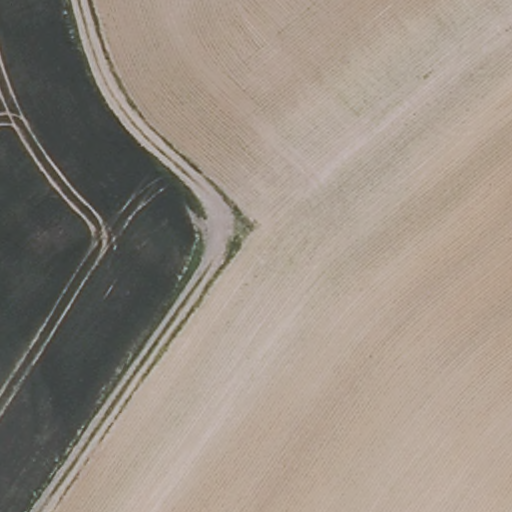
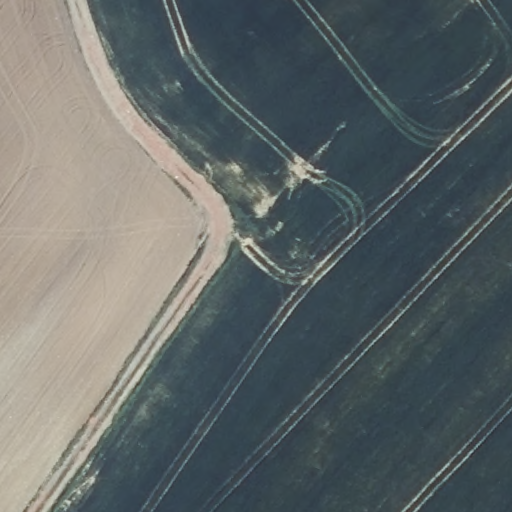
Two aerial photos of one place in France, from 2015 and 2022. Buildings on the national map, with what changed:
[]

